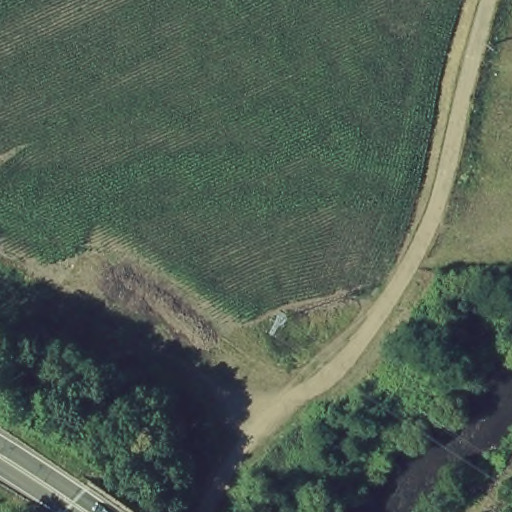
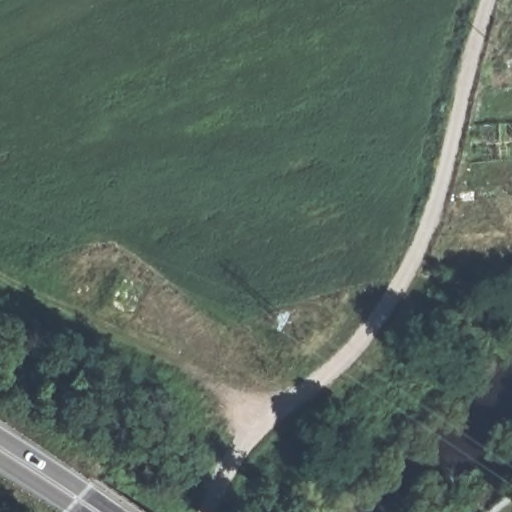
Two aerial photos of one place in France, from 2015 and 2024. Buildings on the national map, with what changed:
[]

